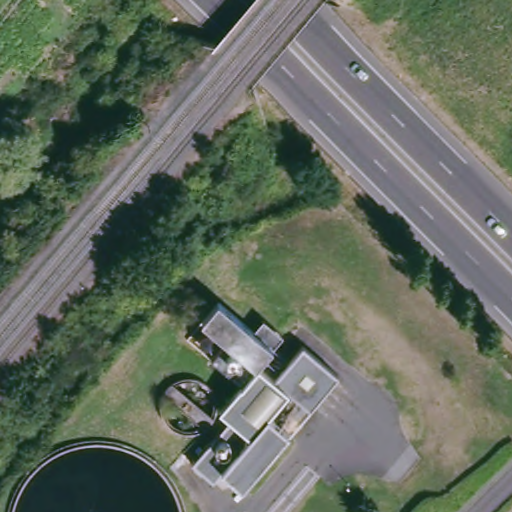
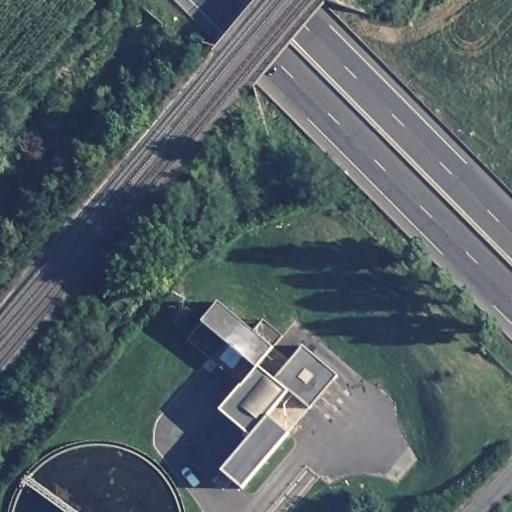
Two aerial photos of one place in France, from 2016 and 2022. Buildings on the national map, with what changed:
unchanged [(224,305),(282,351),(269,368),(281,377),(307,347),(343,378),(316,411),(297,396),(276,420),(295,436),(247,492),(228,477),(219,487),(196,467),(233,421),(226,415),(248,389),(218,365),(233,347),(207,325),(224,305)]

